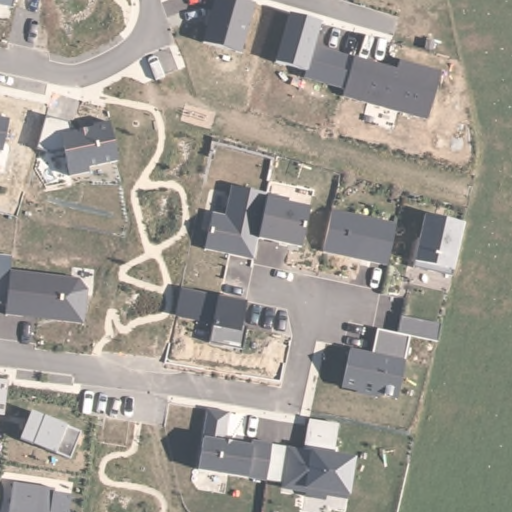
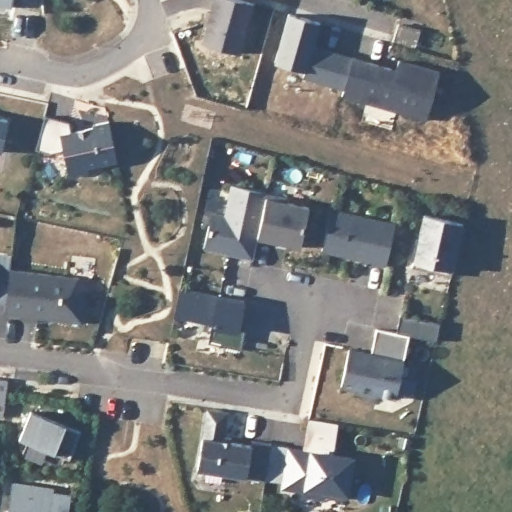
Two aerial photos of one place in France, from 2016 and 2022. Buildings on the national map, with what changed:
unchanged [(13,0),(11,7),(0,5),(0,0),(13,0)]
unchanged [(246,0),(255,2),(240,53),(200,41),(213,0),(246,0)]
unchanged [(290,13),(320,22),(313,45),(352,56),(395,67),(400,59),(442,71),(427,119),(342,96),(345,89),(305,78),(306,70),(275,61),(290,13)]
unchanged [(71,130),(111,122),(122,160),(90,166),(91,172),(70,176),(63,151),(50,152),(36,148),(45,114),(70,121),(71,130)]
unchanged [(9,121),(2,150),(0,150),(0,119),(9,121)]
unchanged [(254,257),(202,247),(212,212),(224,213),(230,184),(271,192),(265,198),(311,206),(304,247),(257,239),(254,257)]
unchanged [(321,253),(331,209),(393,222),(387,264),(321,253)]
unchanged [(426,215),(461,224),(450,269),(413,260),(426,215)]
unchanged [(6,302),(0,302),(0,253),(11,254),(10,270),(75,276),(85,293),(82,321),(5,313),(6,302)]
unchanged [(209,342),(212,326),(174,317),(179,288),(217,297),(246,302),(241,330),(239,349),(209,342)]
unchanged [(404,362),(398,397),(378,393),(377,397),(342,389),(352,348),(369,351),(375,327),(398,331),(401,316),(438,324),(434,340),(410,335),(404,362)]
unchanged [(0,415),(0,378),(7,378),(4,415),(0,415)]
unchanged [(340,423),(332,452),(356,456),(350,494),(349,498),(325,495),(323,501),(303,498),(305,491),(282,488),(282,481),(265,478),(249,476),(199,471),(204,438),(211,409),(229,412),(221,438),(228,439),(250,443),(252,439),(269,442),(288,446),(302,448),(308,415),(340,423)]
unchanged [(55,451),(35,442),(22,436),(32,412),(45,417),(65,424),(81,429),(69,458),(55,451)]
unchanged [(15,482),(55,487),(55,492),(71,493),(69,512),(9,512),(15,482)]

